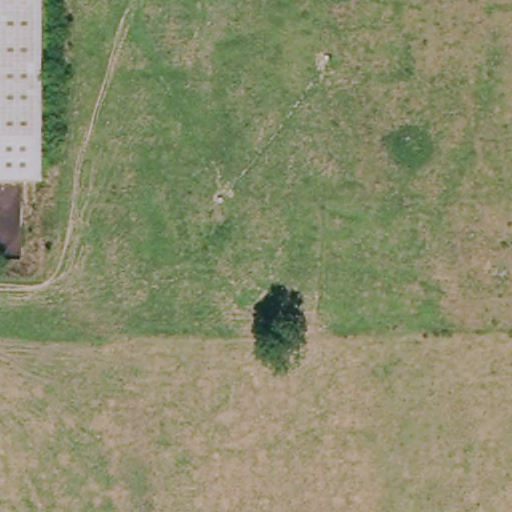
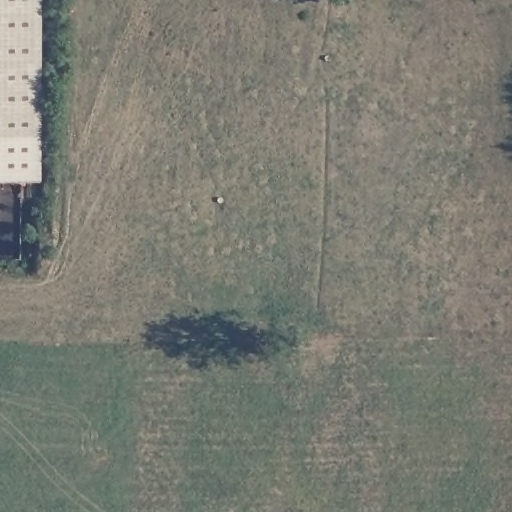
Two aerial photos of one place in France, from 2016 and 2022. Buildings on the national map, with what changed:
unchanged [(46,137),(0,139),(0,0),(43,0),(46,137)]
unchanged [(46,184),(0,183),(0,139),(46,137),(46,184)]

